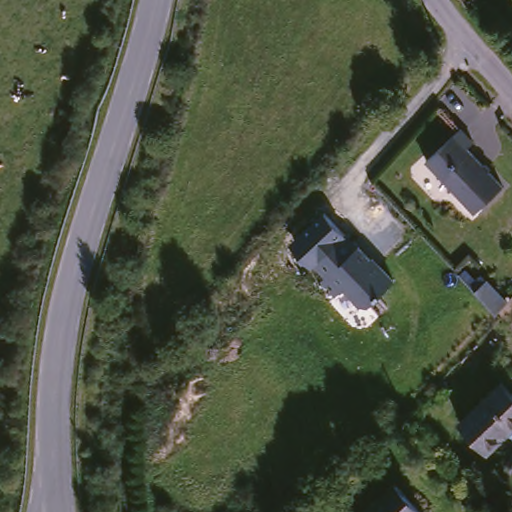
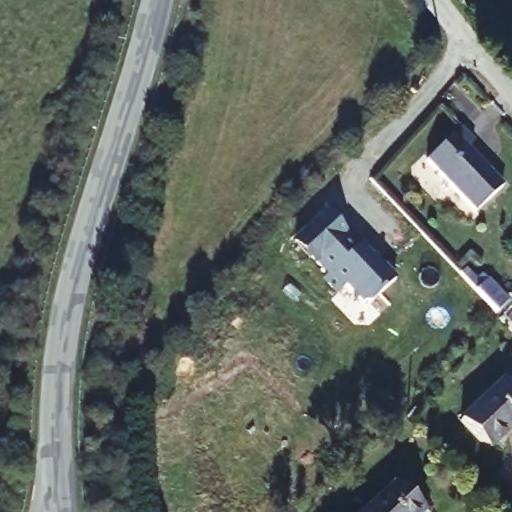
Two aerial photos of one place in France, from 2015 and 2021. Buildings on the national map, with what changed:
unchanged [(423,168),(458,134),(471,147),(465,153),(501,191),(472,218),(423,168)]
unchanged [(365,246),(365,245),(383,267),(385,265),(397,281),(370,303),(363,303),(349,284),(340,292),(327,276),(332,272),(322,259),(354,233),(365,246)]
unchanged [(464,271),(471,264),(487,283),(491,279),(510,302),(498,312),(479,289),(464,271)]
unchanged [(455,424),(496,383),(512,398),(512,424),(485,452),(455,424)]
unchanged [(420,512),(364,512),(390,485),(420,512)]

